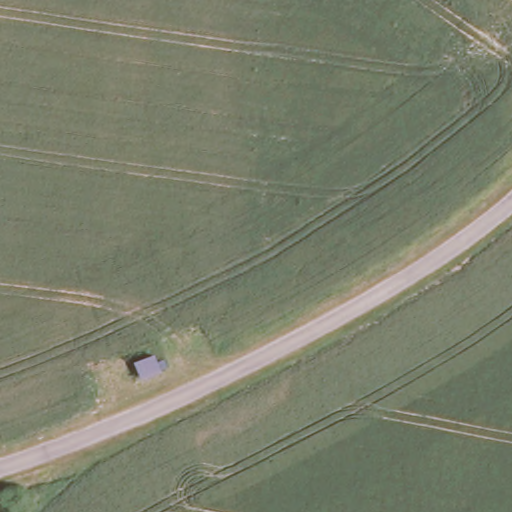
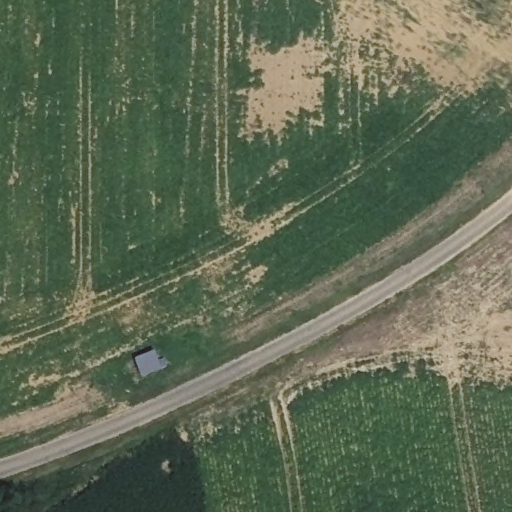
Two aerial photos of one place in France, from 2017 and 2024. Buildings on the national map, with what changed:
unchanged [(128,370),(148,362),(150,367),(158,365),(162,373),(137,385),(128,370)]

